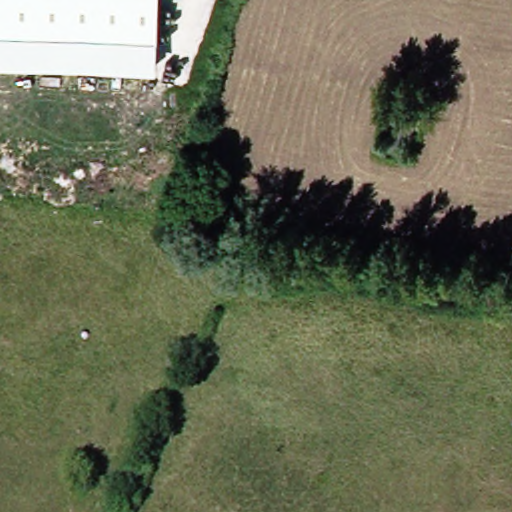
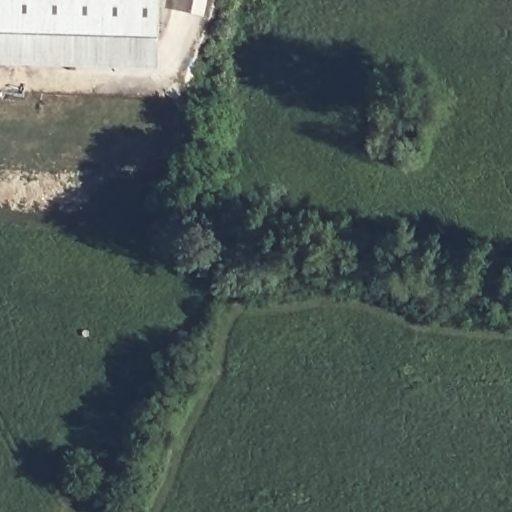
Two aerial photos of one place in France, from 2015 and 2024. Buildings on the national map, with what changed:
unchanged [(0,45),(0,0),(160,0),(159,48),(0,45)]

